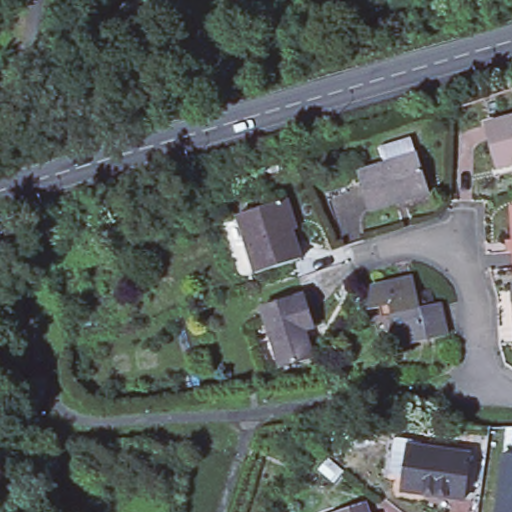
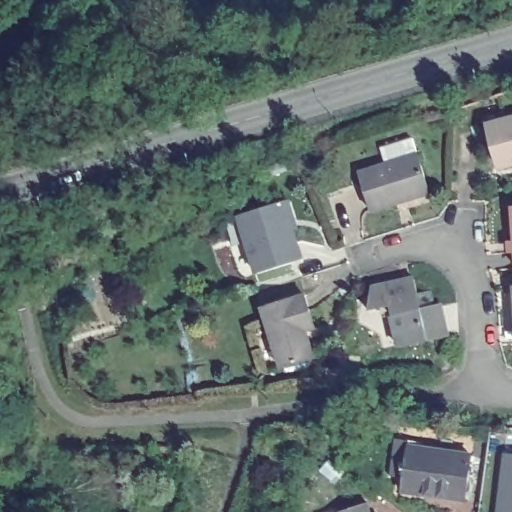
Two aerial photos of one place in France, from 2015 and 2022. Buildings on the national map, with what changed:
unchanged [(512,113),(512,158),(497,162),(486,120),(512,113)]
unchanged [(373,212),(360,172),(389,163),(384,148),(413,139),(417,154),(429,194),(373,212)]
unchanged [(286,202),(304,259),(259,274),(250,246),(255,244),(246,215),(286,202)]
unchanged [(421,280),(424,297),(434,294),(438,298),(441,306),(446,307),(454,336),(406,349),(395,307),(374,313),(378,290),(421,280)]
unchanged [(316,329),(308,332),(316,357),(284,367),(266,310),(306,297),(316,329)]
unchanged [(471,502),(409,494),(412,480),(397,478),(400,441),(429,445),(428,451),(477,458),(471,502)]
unchanged [(512,457),(512,512),(501,512),(508,456),(512,457)]
unchanged [(350,512),(369,505),(371,512),(350,512)]

